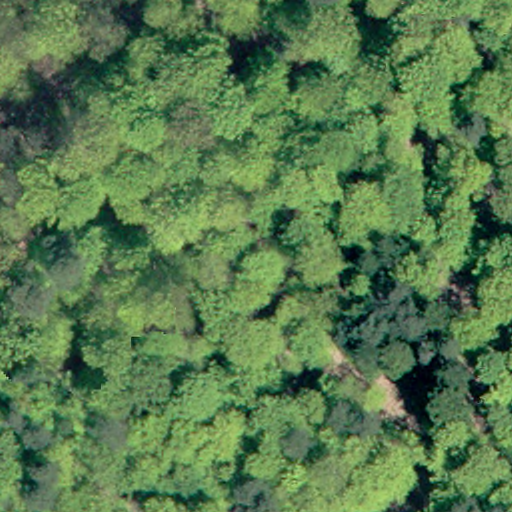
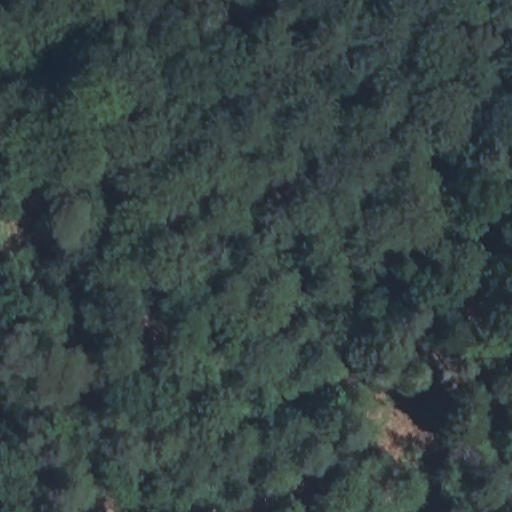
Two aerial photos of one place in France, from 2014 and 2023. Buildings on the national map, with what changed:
[]

